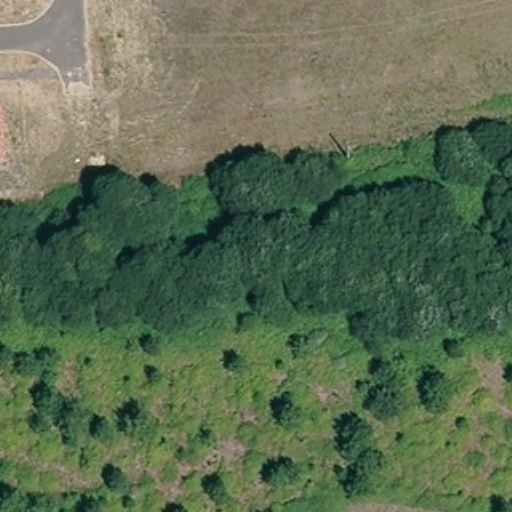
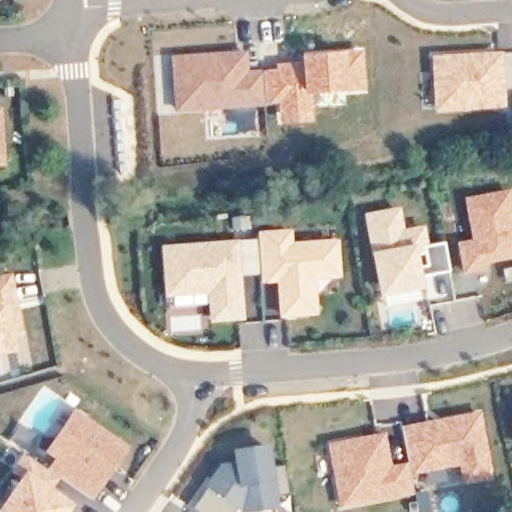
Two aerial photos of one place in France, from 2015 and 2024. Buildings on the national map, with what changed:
new [(247,50),(249,70),(275,68),(274,64),(300,60),(300,54),(364,48),(368,92),(312,95),(315,123),(280,125),(277,105),(229,110),(174,113),(170,54),(247,50)]
new [(503,51),(506,109),(435,113),(432,55),(503,51)]
unchanged [(6,166),(0,167),(0,108),(2,108),(6,166)]
new [(512,192),(512,259),(485,264),(486,272),(464,277),(457,243),(472,240),(465,199),(511,189),(512,192)]
new [(405,230),(425,227),(428,245),(443,242),(448,271),(423,277),(425,290),(381,299),(372,254),(364,214),(400,207),(405,230)]
new [(258,240),(257,232),(293,229),(294,242),(340,239),(343,279),(317,280),(318,315),(280,319),(277,282),(262,284),(261,274),(242,275),(246,320),(211,323),(209,294),(166,298),(162,246),(258,240)]
new [(25,336),(16,338),(20,351),(0,355),(0,276),(15,274),(25,336)]
new [(130,446),(94,502),(48,472),(55,459),(45,452),(76,409),(130,446)]
new [(481,412),(495,479),(465,485),(461,467),(413,476),(411,466),(403,427),(481,412)]
new [(510,418),(512,417),(512,424),(510,418)]
new [(385,436),(391,469),(411,466),(413,476),(416,494),(345,508),(334,445),(385,436)]
new [(236,468),(234,451),(271,444),(275,467),(286,466),(290,494),(278,496),(280,508),(242,512),(199,512),(200,511),(195,508),(225,462),(236,468)]
new [(42,481),(75,505),(70,512),(0,512),(0,508),(22,477),(12,474),(27,454),(48,472),(42,481)]

